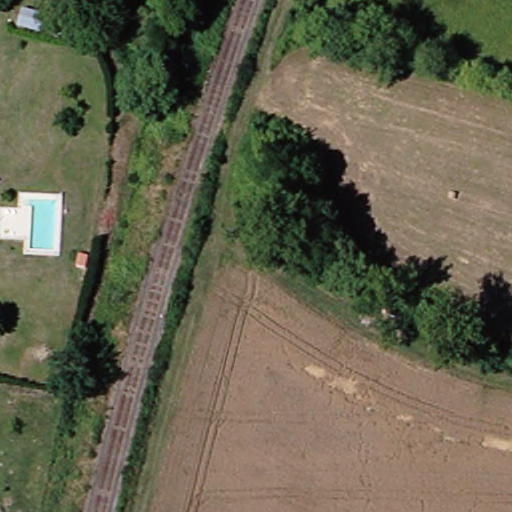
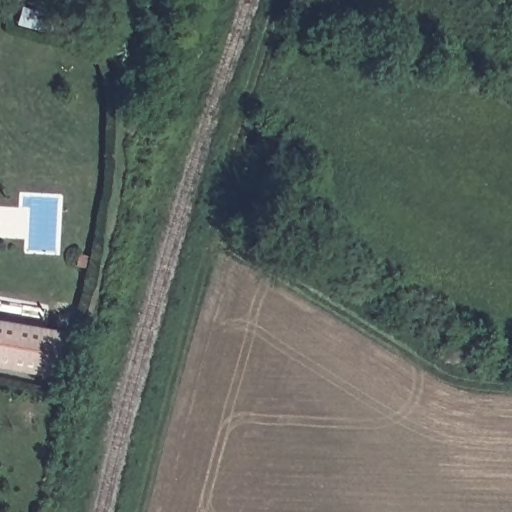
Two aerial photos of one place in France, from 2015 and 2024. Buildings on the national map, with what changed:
unchanged [(84,44),(80,57),(55,49),(59,36),(84,44)]
new [(63,331),(55,379),(0,369),(0,320),(63,331)]

